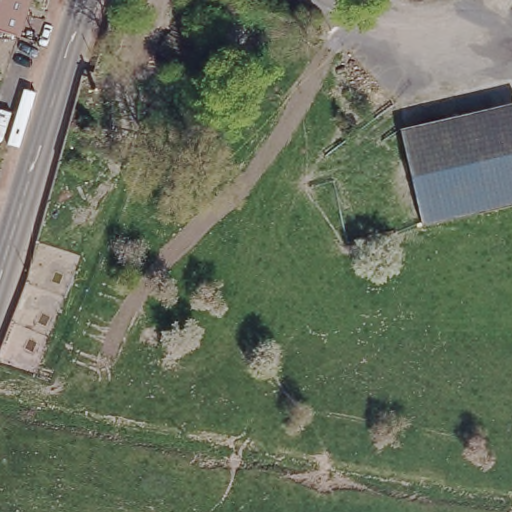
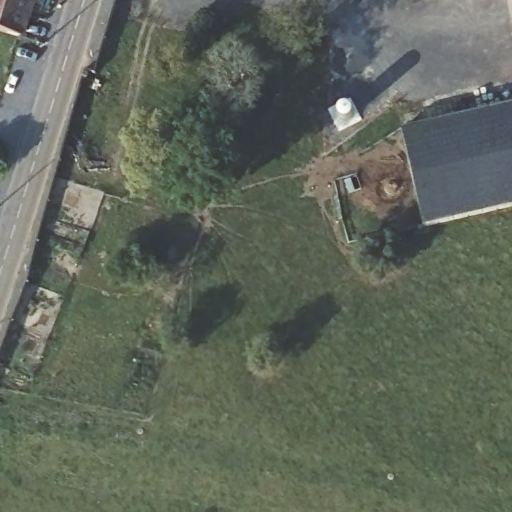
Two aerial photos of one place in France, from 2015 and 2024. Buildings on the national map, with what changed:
unchanged [(26,0),(17,34),(0,30),(0,0),(26,0)]
unchanged [(512,205),(422,220),(421,219),(395,125),(512,100),(512,205)]

